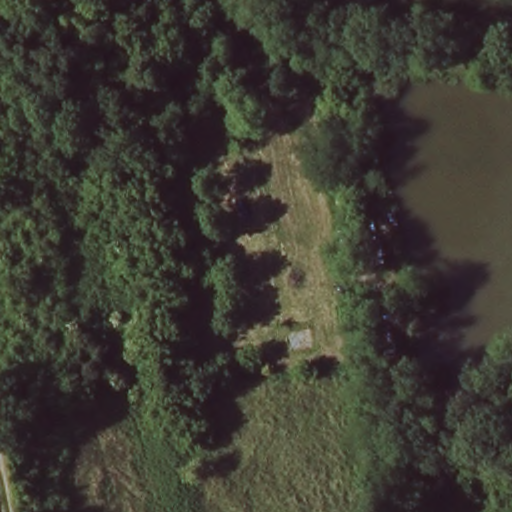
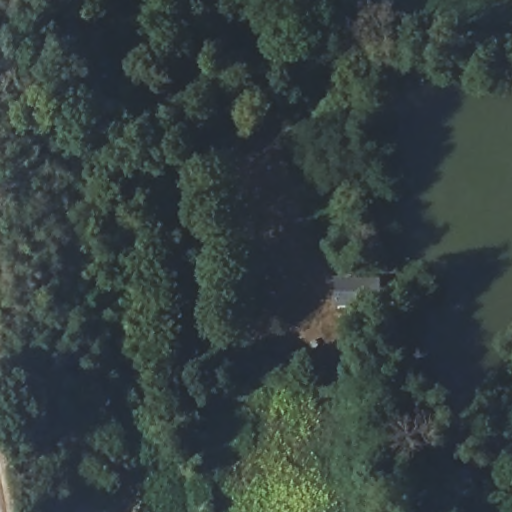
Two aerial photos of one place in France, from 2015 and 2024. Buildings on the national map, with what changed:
unchanged [(390,239),(395,260),(368,268),(365,244),(390,239)]

